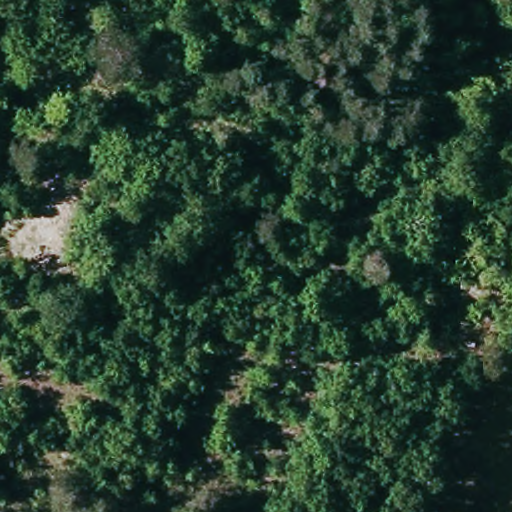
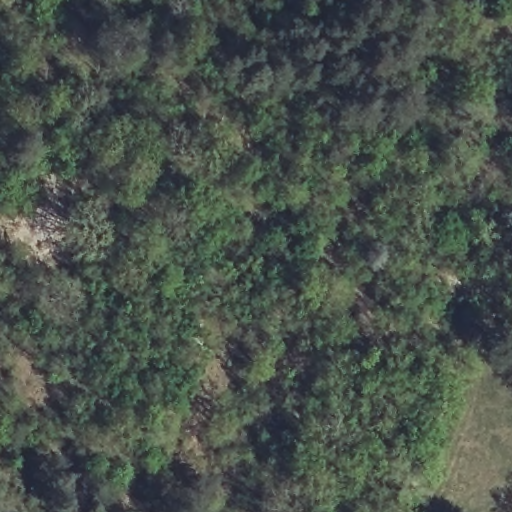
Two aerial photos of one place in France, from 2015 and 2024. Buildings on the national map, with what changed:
unchanged [(200,320),(195,339),(178,334),(184,314),(200,320)]

